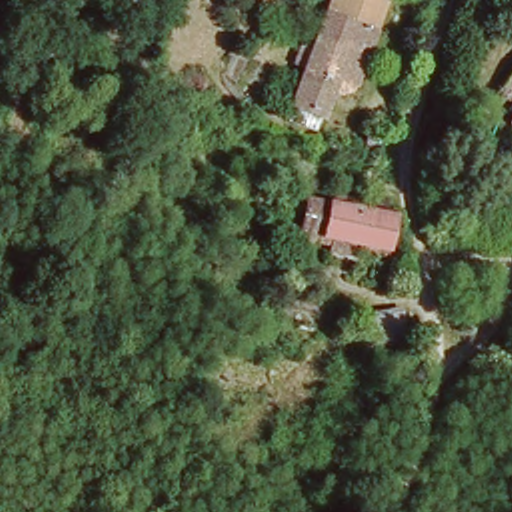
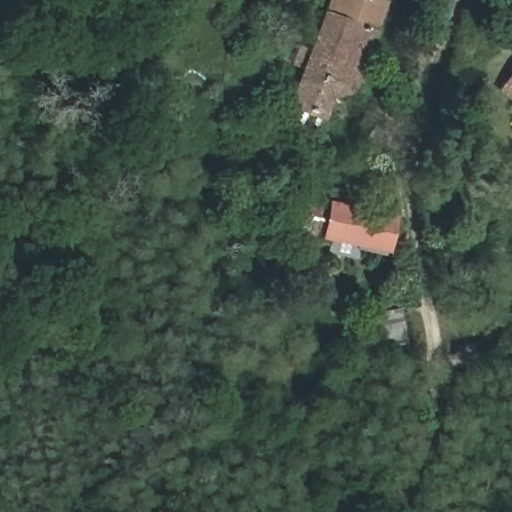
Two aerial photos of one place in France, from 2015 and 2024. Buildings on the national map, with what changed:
unchanged [(369,2),(339,83),(322,77),(307,113),(274,101),(311,0),(364,0),(369,2)]
unchanged [(512,64),(512,92),(498,84),(512,64)]
unchanged [(398,252),(265,229),(270,198),(401,222),(399,243),(398,252)]
unchanged [(456,232),(461,223),(485,228),(489,218),(500,222),(494,244),(456,232)]

